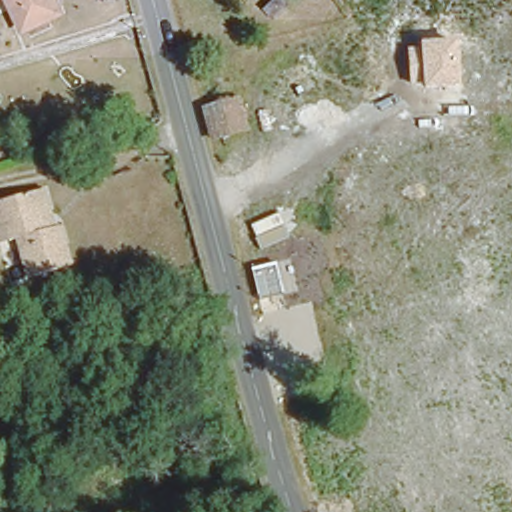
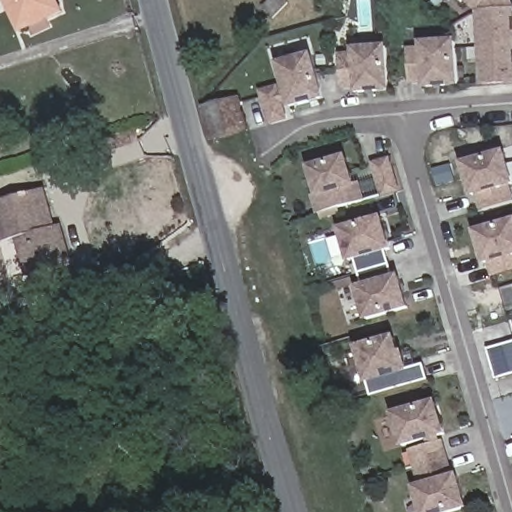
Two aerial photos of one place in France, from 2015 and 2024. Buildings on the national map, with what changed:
unchanged [(24,20),(16,0),(63,0),(63,1),(24,20)]
new [(474,11),(461,0),(510,0),(512,4),(512,84),(479,86),(474,11)]
unchanged [(460,89),(423,91),(422,84),(411,84),(407,50),(421,50),(421,43),(456,41),(460,89)]
new [(339,53),(352,53),(352,49),(388,46),(391,91),(355,94),(355,89),(341,91),(339,53)]
new [(287,121),(268,126),(259,91),(278,86),(278,91),(283,90),(276,63),(312,54),(325,101),(289,110),(288,104),(283,105),(287,121)]
unchanged [(252,98),(253,102),(258,122),(260,131),(218,141),(217,141),(210,107),(252,98)]
new [(512,201),(479,209),(473,196),(470,198),(461,163),(506,151),(512,171),(512,187),(508,188),(512,194),(512,201)]
new [(377,183),(371,164),(391,158),(399,191),(381,196),(364,201),(315,216),(310,197),(316,196),(307,166),(348,156),(356,185),(361,183),(363,187),(377,183)]
unchanged [(48,182),(60,221),(64,220),(75,258),(33,271),(21,233),(13,235),(4,238),(0,225),(0,197),(3,197),(41,185),(48,182)]
new [(355,261),(347,263),(338,229),(383,216),(393,251),(384,253),(391,277),(400,275),(409,310),(365,322),(356,287),(361,286),(355,261)]
new [(487,264),(484,265),(474,230),(512,220),(512,271),(491,277),(487,264)]
new [(428,381),(371,397),(367,385),(356,348),(395,335),(400,352),(404,351),(408,370),(424,365),(428,381)]
new [(487,350),(512,343),(512,375),(496,381),(487,350)]
new [(424,441),(402,448),(392,413),(437,399),(447,436),(442,438),(443,442),(452,476),(460,474),(470,510),(460,512),(420,512),(413,486),(417,485),(408,450),(426,446),(424,441)]

